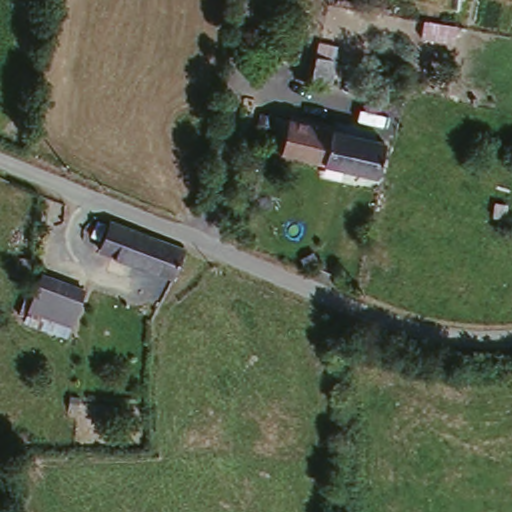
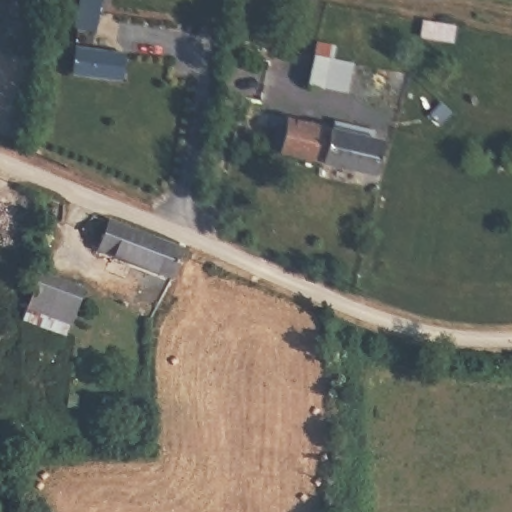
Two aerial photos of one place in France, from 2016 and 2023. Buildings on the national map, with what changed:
new [(124,82),(73,75),(77,46),(128,53),(126,68),(124,82)]
unchanged [(348,84),(353,47),(414,56),(408,93),(348,84)]
unchanged [(332,58),(329,86),(311,85),(315,55),(332,58)]
unchanged [(274,131),(285,133),(286,121),(382,139),(376,170),(270,151),(274,131)]
unchanged [(112,226),(184,251),(172,279),(100,252),(112,226)]
unchanged [(47,315),(26,308),(40,269),(86,285),(70,335),(44,327),(47,315)]

